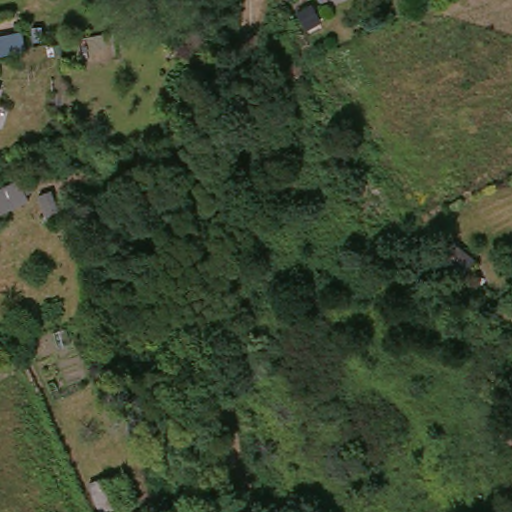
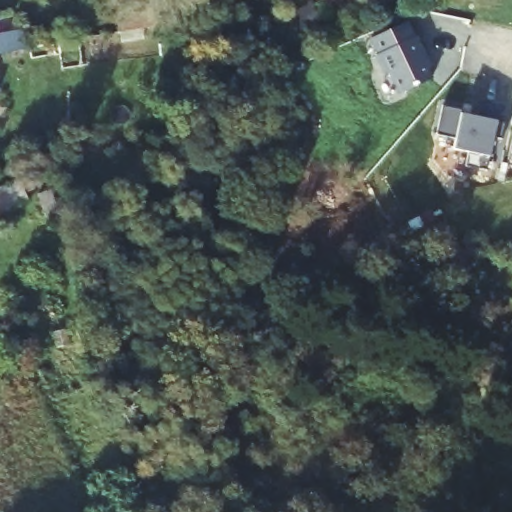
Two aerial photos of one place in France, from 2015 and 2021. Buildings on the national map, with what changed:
demolished [(9,0),(21,42),(0,56),(0,0),(9,0)]
unchanged [(318,0),(336,0),(321,6),(318,0)]
new [(388,72),(385,74),(376,56),(379,54),(371,36),(407,20),(432,76),(400,94),(388,72)]
new [(466,166),(470,151),(453,148),(455,138),(435,132),(441,104),(461,109),(460,113),(497,122),(505,121),(502,138),(494,138),(491,155),(487,170),(466,166)]
unchanged [(20,182),(26,204),(0,218),(0,193),(20,182)]
unchanged [(49,196),(60,223),(45,229),(35,201),(49,196)]

